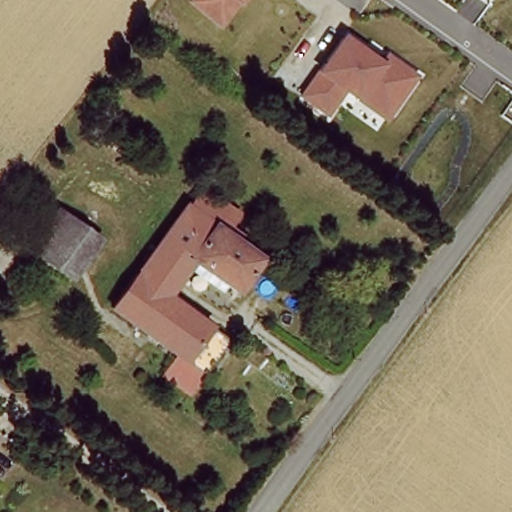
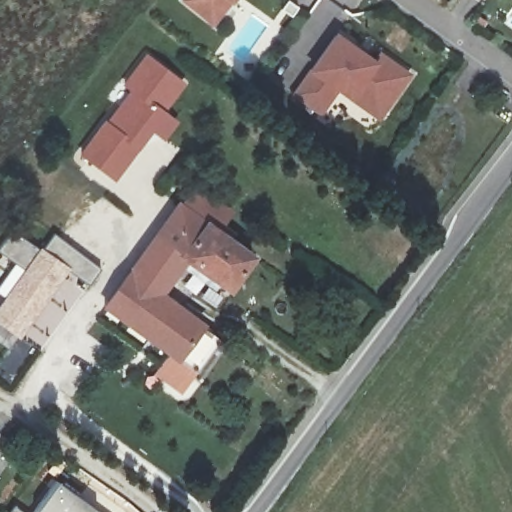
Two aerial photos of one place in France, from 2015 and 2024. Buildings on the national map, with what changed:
unchanged [(181,1),(182,0),(237,0),(234,4),(215,29),(181,1)]
unchanged [(293,96),(309,72),(336,31),(375,59),(380,50),(412,75),(381,120),(352,101),(341,95),(321,117),(293,96)]
new [(103,119),(107,121),(127,91),(120,87),(145,51),(186,81),(164,110),(178,122),(165,141),(152,133),(115,182),(78,155),(103,119)]
unchanged [(195,180),(235,210),(226,221),(235,229),(231,235),(181,199),(195,180)]
unchanged [(231,235),(256,254),(231,286),(189,254),(164,290),(223,332),(183,388),(157,370),(171,350),(107,302),(181,199),(231,235)]
unchanged [(0,326),(0,304),(24,270),(0,253),(0,247),(11,232),(38,250),(39,247),(43,252),(54,235),(100,268),(88,283),(68,269),(18,339),(0,326)]
new [(56,481),(97,510),(99,512),(33,512),(35,510),(56,481)]
new [(19,512),(11,512),(14,508),(19,512)]

